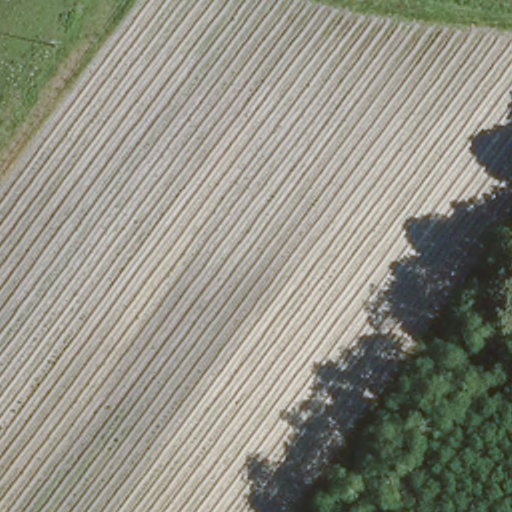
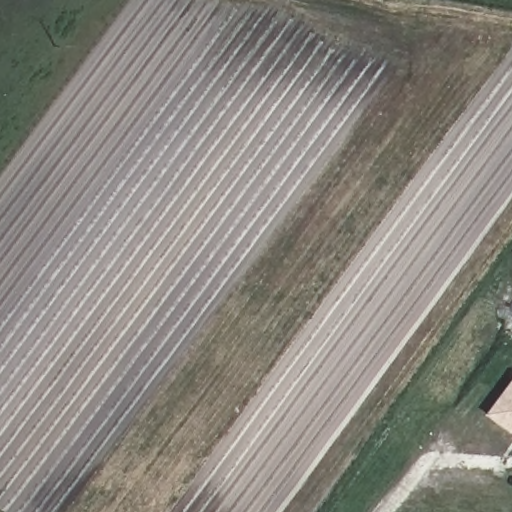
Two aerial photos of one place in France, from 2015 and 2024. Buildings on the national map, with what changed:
new [(483,415),(512,382),(512,437),(483,415)]

